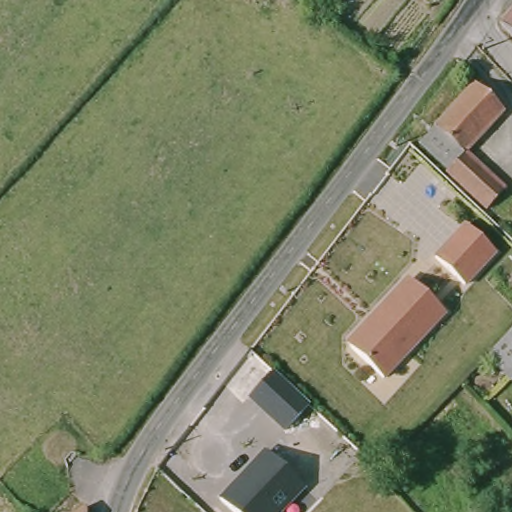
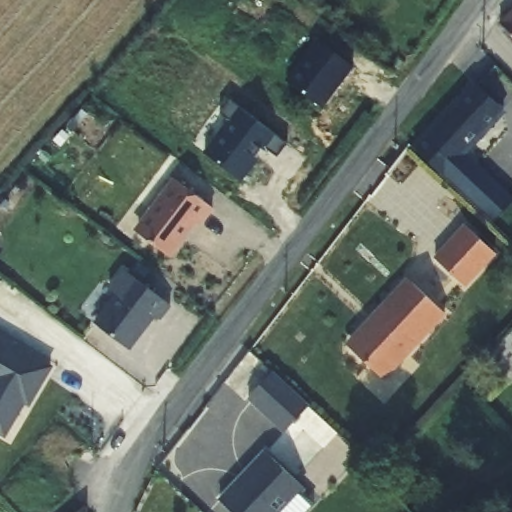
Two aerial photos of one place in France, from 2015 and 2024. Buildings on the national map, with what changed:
unchanged [(256,5),(250,0),(260,0),(256,5)]
unchanged [(512,42),(495,25),(512,7),(512,42)]
new [(285,80),(317,40),(353,67),(322,107),(285,80)]
unchanged [(503,110),(463,154),(464,155),(460,159),(461,159),(470,160),(503,190),(487,210),(446,172),(448,170),(419,144),(433,128),(475,84),(503,110)]
new [(257,122),(285,143),(282,155),(257,146),(251,154),(259,160),(244,179),(203,152),(230,120),(220,112),(229,101),(248,116),(242,125),(250,131),(257,122)]
new [(175,179),(212,208),(201,224),(197,220),(172,253),(165,254),(139,234),(138,227),(175,179)]
demolished [(512,194),(512,206),(507,200),(512,194)]
unchanged [(465,225),(495,253),(463,286),(435,258),(465,225)]
new [(128,350),(95,323),(117,295),(110,288),(123,270),(170,305),(160,319),(155,315),(148,324),(128,350)]
unchanged [(348,340),(360,327),(362,328),(377,313),(376,311),(390,297),(404,282),(411,282),(443,313),(426,331),(381,378),(348,347),(348,340)]
unchanged [(512,329),(512,367),(494,349),(510,331),(512,329)]
new [(50,367),(28,405),(25,402),(5,436),(0,433),(0,337),(50,367)]
unchanged [(270,370),(306,405),(282,430),(245,395),(270,370)]
unchanged [(233,512),(220,500),(240,478),(267,451),(272,456),(305,487),(281,512),(233,512)]

